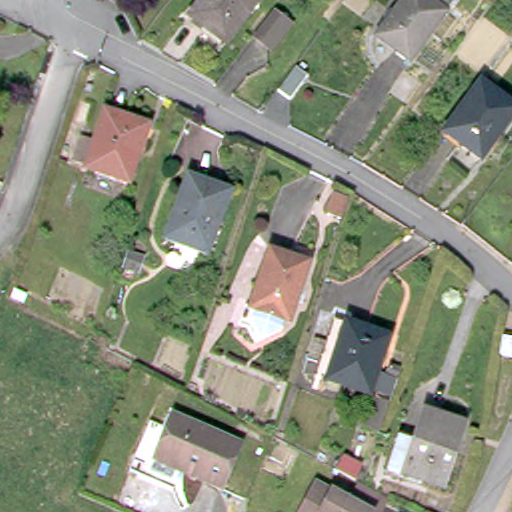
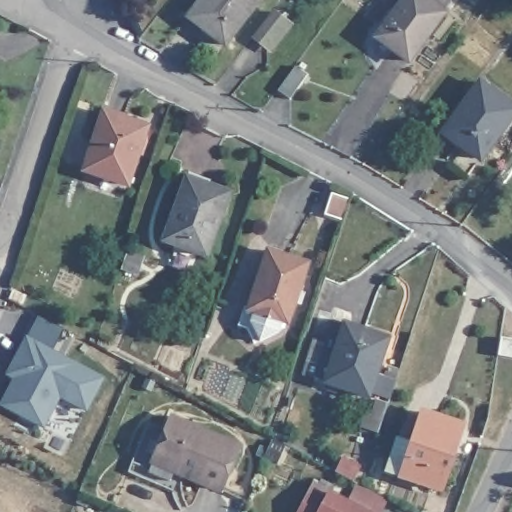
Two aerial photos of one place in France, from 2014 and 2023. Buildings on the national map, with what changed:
unchanged [(189,17),(202,0),(259,0),(225,44),(189,17)]
unchanged [(445,18),(409,66),(377,42),(408,0),(454,0),(442,15),(445,18)]
unchanged [(267,53),(254,42),(274,17),(287,28),(267,53)]
unchanged [(481,159),(445,132),(481,82),(512,105),(512,117),(481,159)]
unchanged [(128,185),(85,170),(87,165),(75,161),(82,139),(94,143),(105,112),(148,126),(128,185)]
unchanged [(230,193),(207,255),(165,240),(188,178),(230,193)]
unchanged [(342,219),(329,215),(335,194),(348,198),(342,219)]
unchanged [(300,284),(302,285),(297,298),(295,298),(289,318),(285,316),(281,327),(255,339),(247,324),(244,323),(269,246),(308,258),(300,284)]
unchanged [(144,258),(139,273),(124,268),(129,253),(144,258)]
unchanged [(376,393),(375,397),(345,388),(343,393),(329,389),(330,383),(319,379),(310,375),(313,364),(312,361),(319,339),(330,343),(338,319),(394,338),(382,375),(400,382),(395,399),(376,393)]
new [(9,364),(23,337),(100,377),(83,409),(56,395),(40,426),(0,404),(0,399),(12,377),(4,373),(9,364)]
unchanged [(502,338),(512,340),(512,357),(499,356),(502,338)]
unchanged [(402,377),(391,374),(393,368),(404,371),(402,377)]
unchanged [(391,404),(381,433),(365,428),(370,413),(377,414),(382,401),(391,404)]
unchanged [(437,494),(382,476),(393,444),(408,449),(419,417),(459,430),(437,494)]
unchanged [(172,419),(239,447),(220,490),(183,474),(155,461),(157,456),(172,419)]
unchanged [(367,466),(360,481),(341,472),(347,457),(352,459),(367,466)]
unchanged [(317,489),(320,485),(355,504),(365,484),(366,484),(377,491),(392,499),(385,512),(305,512),(317,489)]

